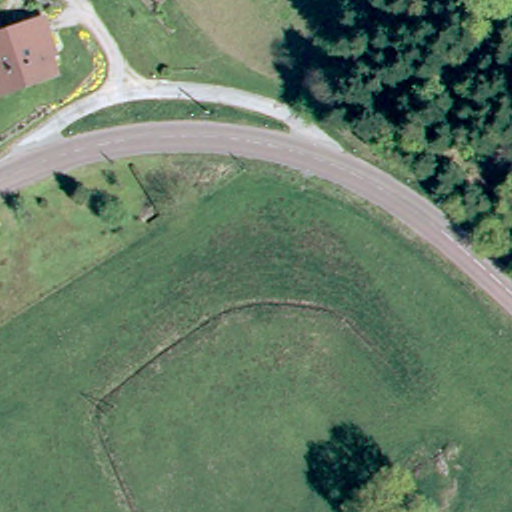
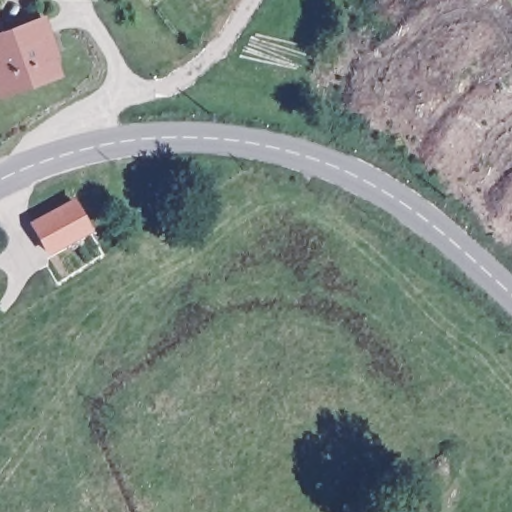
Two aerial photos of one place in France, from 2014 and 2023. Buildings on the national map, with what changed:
unchanged [(51,35),(45,37),(56,73),(0,90),(0,29),(48,19),(51,35)]
new [(29,221),(74,196),(93,228),(47,254),(29,221)]

